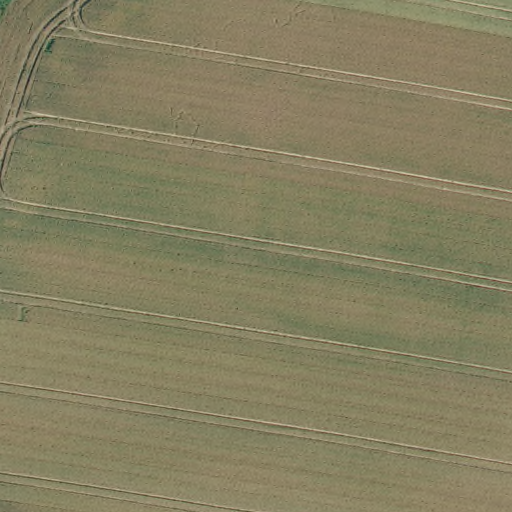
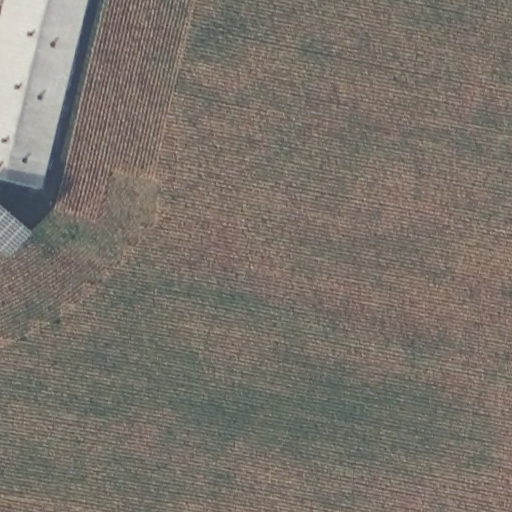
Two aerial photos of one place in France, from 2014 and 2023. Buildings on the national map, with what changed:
new [(0,181),(0,8),(2,0),(87,0),(41,190),(0,181)]

